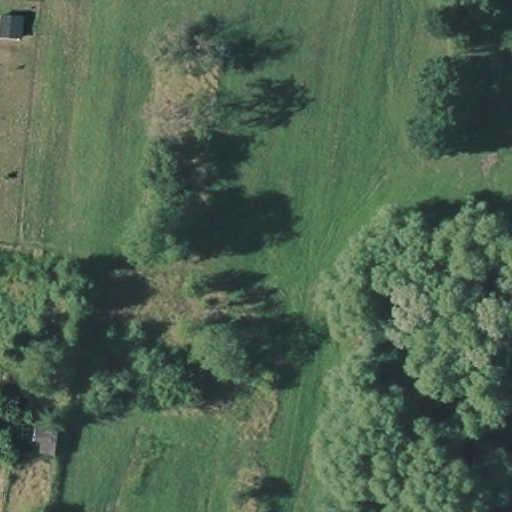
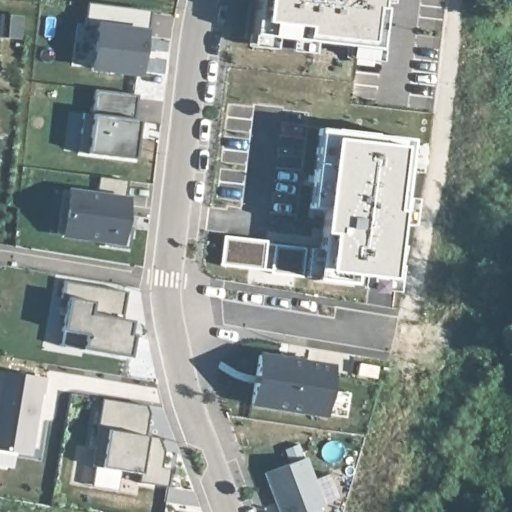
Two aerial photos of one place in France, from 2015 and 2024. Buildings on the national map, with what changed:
new [(382,9),(377,51),(250,37),(254,0),(379,0),(378,9),(382,9)]
new [(140,79),(90,73),(95,29),(82,26),(85,4),(148,13),(145,29),(140,79)]
new [(25,43),(0,41),(0,18),(26,19),(25,43)]
new [(80,133),(82,114),(91,114),(94,90),(137,95),(134,119),(139,120),(137,138),(134,160),(86,154),(78,153),(80,133)]
new [(402,150),(392,215),(397,215),(388,282),(323,277),(325,238),(318,236),(329,139),(402,150)]
new [(138,218),(135,217),(133,229),(135,229),(132,249),(107,245),(107,240),(68,235),(60,234),(65,192),(73,193),(100,197),(103,177),(132,181),(130,200),(128,215),(139,217),(138,218)]
new [(268,240),(308,249),(306,281),(261,272),(218,268),(222,236),(268,240)]
new [(123,292),(121,317),(130,320),(127,334),(132,335),(128,357),(82,350),(85,336),(61,331),(68,299),(60,298),(61,280),(123,292)]
new [(325,414),(252,402),(257,357),(332,369),(325,414)]
new [(377,368),(375,379),(357,376),(358,365),(377,368)]
new [(0,372),(44,381),(27,455),(0,451),(0,372)]
new [(137,484),(139,474),(90,465),(98,398),(147,404),(142,436),(154,437),(152,451),(164,452),(162,469),(172,471),(168,488),(137,484)]
new [(264,472),(307,457),(322,507),(317,510),(318,512),(278,512),(264,472)]

